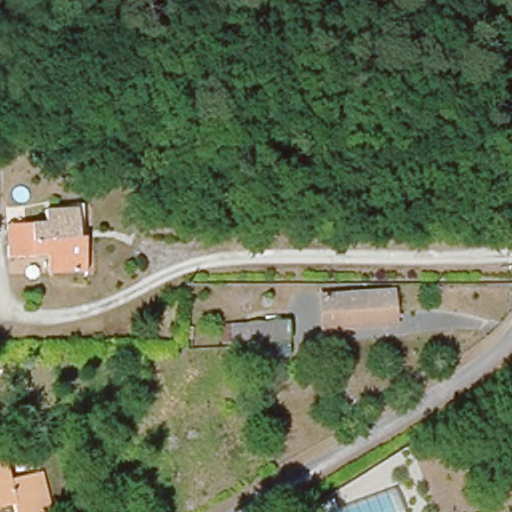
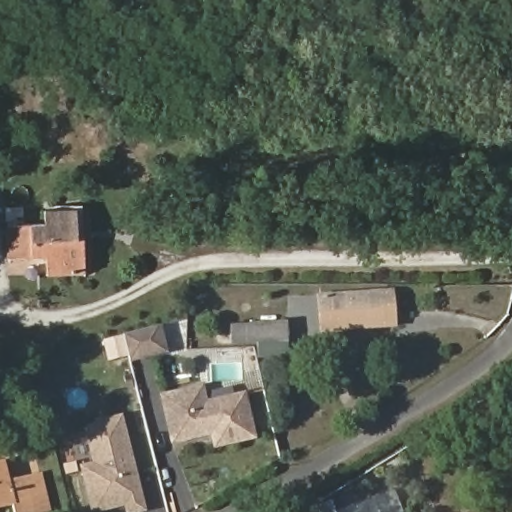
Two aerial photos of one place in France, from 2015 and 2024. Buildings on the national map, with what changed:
unchanged [(86,234),(86,240),(23,243),(9,244),(7,223),(47,220),(47,215),(47,207),(78,205),(79,214),(80,234),(86,234)]
unchanged [(23,243),(86,240),(87,267),(51,268),(49,253),(9,254),(9,244),(23,243)]
unchanged [(327,323),(325,295),(392,289),(392,301),(395,318),(387,318),(327,323)]
unchanged [(258,341),(257,333),(227,336),(226,318),(279,316),(281,340),(281,347),(259,350),(258,341)]
new [(160,324),(168,360),(132,369),(124,334),(160,324)]
new [(210,434),(171,443),(159,393),(204,382),(207,398),(246,390),(256,438),(215,448),(210,434)]
new [(140,512),(129,512),(127,505),(104,512),(91,512),(80,466),(94,462),(84,424),(124,412),(147,509),(140,512)]
unchanged [(0,498),(0,453),(7,451),(12,471),(31,467),(45,465),(54,501),(39,505),(19,510),(15,495),(0,498)]
new [(336,505),(337,512),(315,512),(336,505)]

